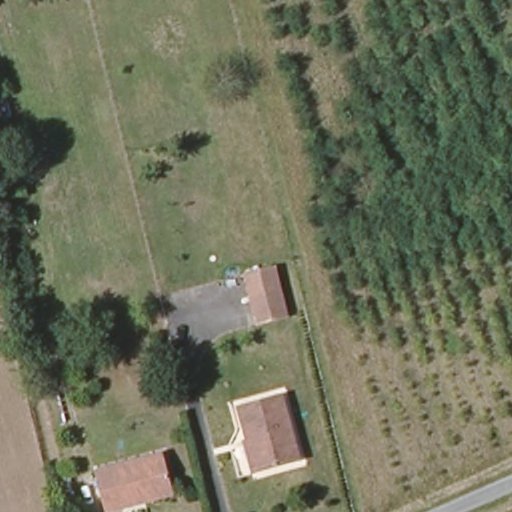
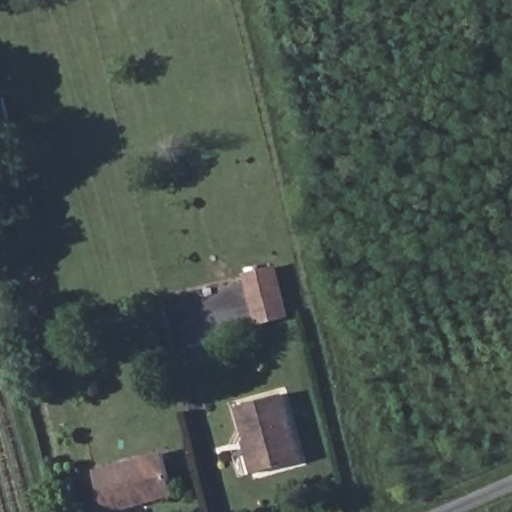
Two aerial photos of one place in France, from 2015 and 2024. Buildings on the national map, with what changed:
unchanged [(246,270),(275,262),(288,310),(259,317),(246,270)]
unchanged [(235,406),(277,392),(298,459),(260,471),(252,473),(242,440),(245,439),(235,406)]
unchanged [(139,505),(114,512),(104,512),(95,472),(161,455),(170,489),(172,497),(139,505)]

